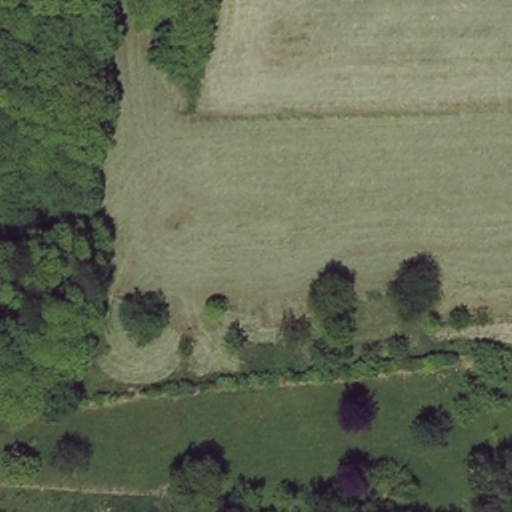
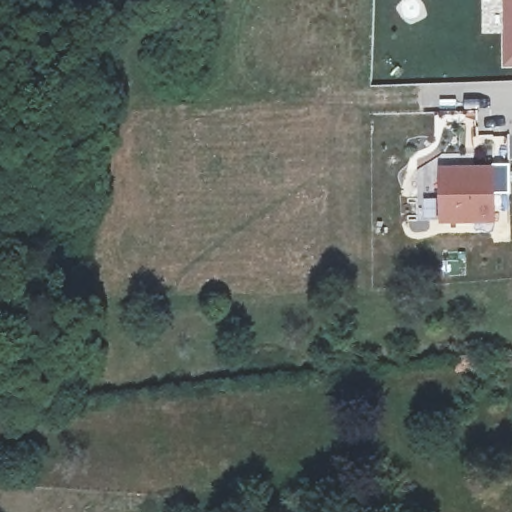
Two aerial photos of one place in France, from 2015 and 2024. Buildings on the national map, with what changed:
new [(509,63),(507,0),(512,0),(512,63),(509,63)]
new [(492,169),(492,164),(509,164),(510,193),(493,194),(494,220),(442,222),(440,170),(492,169)]

